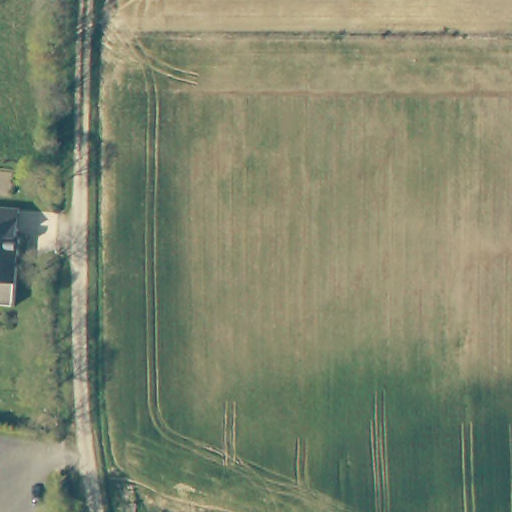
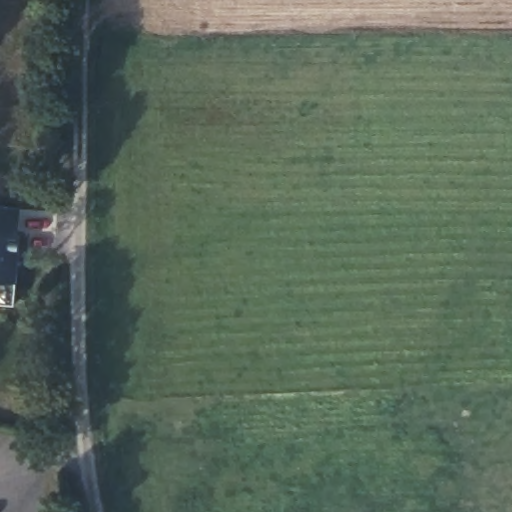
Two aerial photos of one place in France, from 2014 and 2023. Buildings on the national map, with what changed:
unchanged [(4,309),(0,308),(0,209),(23,210),(21,240),(23,240),(19,310),(4,309)]

